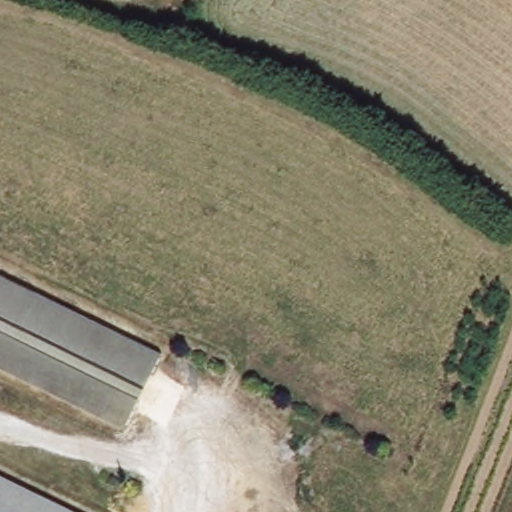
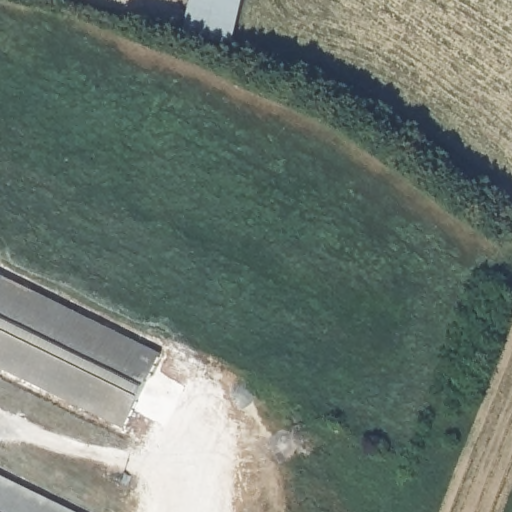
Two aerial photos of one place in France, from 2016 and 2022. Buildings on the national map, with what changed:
new [(234,41),(184,26),(191,0),(244,0),(234,41)]
unchanged [(125,426),(0,365),(0,277),(160,355),(125,426)]
unchanged [(0,512),(0,477),(71,512),(0,512)]

